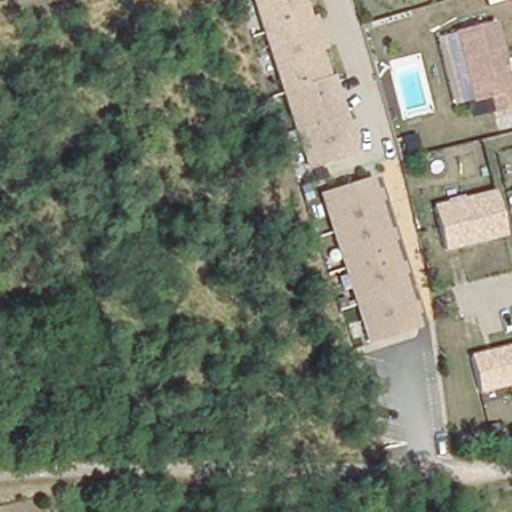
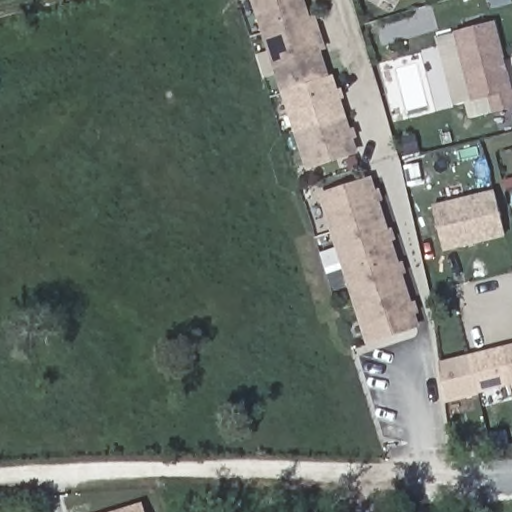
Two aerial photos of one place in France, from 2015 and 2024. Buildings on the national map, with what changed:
unchanged [(303,0),(310,22),(268,35),(257,0),(303,0)]
unchanged [(310,22),(315,20),(321,36),(315,38),(328,79),(286,93),(268,35),(310,22)]
unchanged [(512,83),(512,112),(491,116),(487,102),(470,107),(452,31),(496,21),(512,83)]
unchanged [(328,79),(336,77),(351,131),(356,130),(362,154),(310,169),(286,93),(328,79)]
unchanged [(378,190),(383,188),(387,201),(382,203),(390,229),(394,228),(399,241),(394,242),(400,263),(405,262),(410,275),(405,277),(413,303),(418,301),(422,314),(417,316),(420,328),(368,346),(319,192),(374,177),(378,190)]
unchanged [(494,193),(504,236),(473,243),(463,201),(494,193)]
unchanged [(442,250),(432,208),(463,201),(473,243),(442,250)]
unchanged [(512,382),(508,383),(499,348),(512,345),(512,382)]
unchanged [(477,390),(468,356),(499,348),(508,383),(477,390)]
new [(477,390),(478,390),(479,394),(446,401),(440,362),(468,356),(477,390)]
new [(143,504),(146,512),(119,512),(143,504)]

